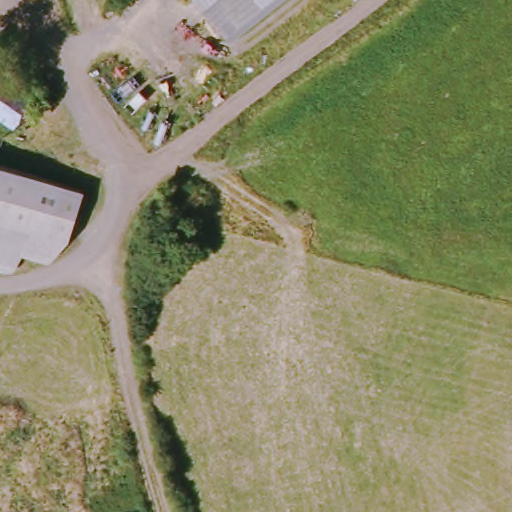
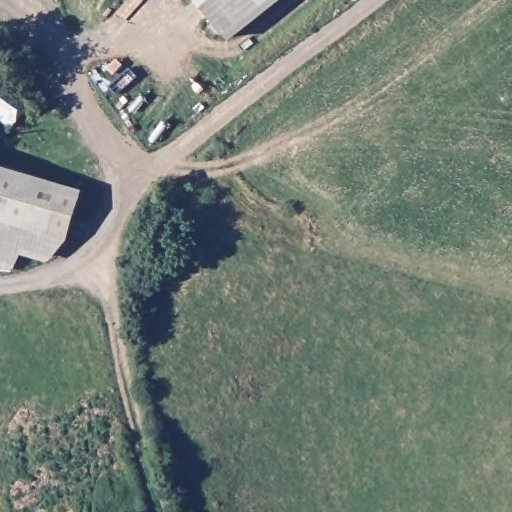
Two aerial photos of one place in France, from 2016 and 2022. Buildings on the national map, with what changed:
unchanged [(227,40),(196,0),(281,0),(227,40)]
unchanged [(32,91),(8,123),(0,117),(0,66),(32,91)]
unchanged [(72,229),(0,208),(0,167),(82,186),(72,229)]
unchanged [(18,249),(7,272),(0,271),(0,208),(72,229),(70,235),(35,257),(18,249)]

